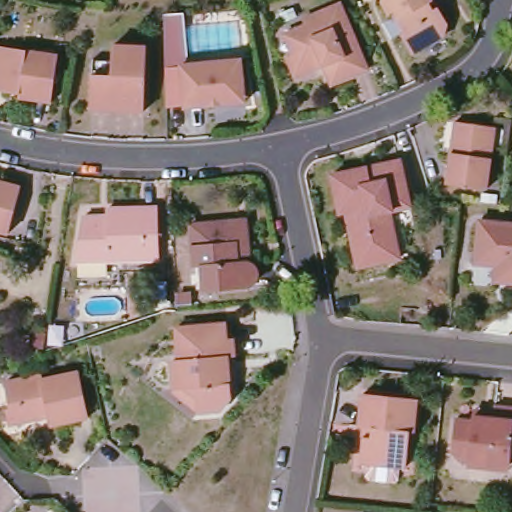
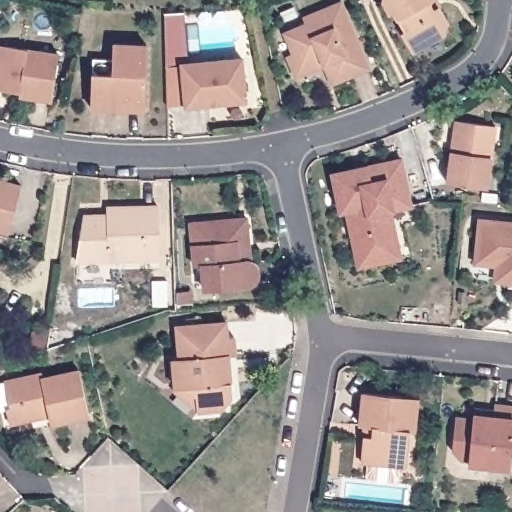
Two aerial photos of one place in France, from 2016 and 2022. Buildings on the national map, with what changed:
unchanged [(407,40),(411,38),(397,20),(394,22),(384,7),(385,2),(387,0),(433,0),(435,2),(431,5),(435,11),(441,8),(452,23),(450,35),(420,57),(407,40)]
unchanged [(332,74),(328,64),(299,76),(292,62),(297,60),(289,39),(310,29),(307,22),(345,6),(374,71),(354,79),(338,86),(332,74)]
unchanged [(92,63),(112,62),(112,46),(145,45),(147,111),(94,112),(92,63)]
unchanged [(20,95),(0,92),(0,48),(58,56),(52,105),(20,101),(20,95)]
unchanged [(183,70),(242,57),(250,98),(192,111),(183,70)]
unchanged [(447,179),(457,120),(498,126),(488,185),(447,179)]
unchanged [(367,272),(358,242),(350,216),(342,218),(330,179),(397,158),(412,205),(390,212),(395,230),(399,229),(404,248),(407,259),(367,272)]
unchanged [(0,185),(23,191),(14,230),(0,227),(0,185)]
unchanged [(82,217),(105,216),(105,208),(157,205),(159,260),(85,263),(82,217)]
unchanged [(495,266),(474,263),(479,220),(512,223),(512,281),(501,280),(494,279),(495,266)]
unchanged [(250,264),(250,267),(250,280),(250,285),(247,288),(244,288),(204,289),(202,264),(193,265),(191,223),(240,221),(249,221),(250,262),(237,263),(246,263),(250,264)]
unchanged [(227,331),(227,347),(234,347),(235,365),(227,365),(230,407),(219,419),(194,420),(193,406),(182,395),(172,396),(172,367),(178,367),(177,334),(227,331)]
unchanged [(5,407),(9,406),(4,380),(42,372),(42,377),(79,370),(87,415),(50,423),(48,413),(19,419),(8,421),(5,407)]
unchanged [(357,426),(361,393),(415,398),(412,433),(407,432),(404,469),(360,465),(362,436),(363,426),(357,426)]
unchanged [(512,405),(512,443),(507,442),(505,467),(462,463),(464,456),(455,456),(444,447),(447,417),(467,420),(467,412),(488,414),(490,403),(512,405)]

